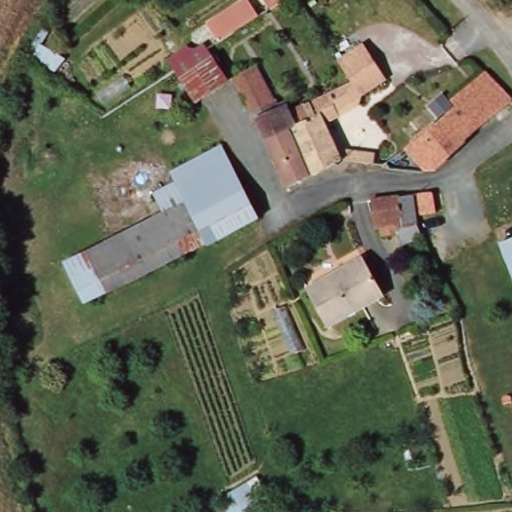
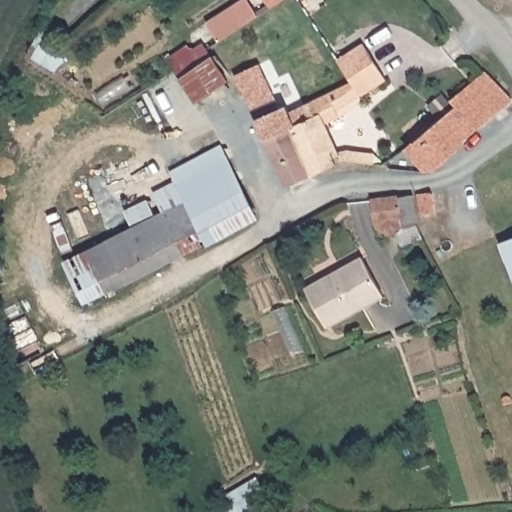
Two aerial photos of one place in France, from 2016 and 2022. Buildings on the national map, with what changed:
unchanged [(208,20),(237,0),(251,0),(259,12),(220,39),(208,20)]
unchanged [(278,0),(270,5),(266,0),(278,0)]
unchanged [(335,54),(360,40),(382,76),(363,93),(359,97),(343,114),(329,122),(344,155),(312,172),(289,125),(312,114),(305,100),(328,90),(349,78),(335,54)]
unchanged [(229,79),(197,100),(190,89),(159,107),(154,99),(184,80),(182,75),(214,56),(229,79)]
unchanged [(312,114),(289,125),(312,172),(286,185),(234,77),(258,65),(274,98),(278,96),(280,104),(289,101),(292,106),(305,100),(312,114)]
unchanged [(509,92),(512,96),(512,97),(436,169),(426,169),(407,147),(414,140),(458,104),(454,97),(462,90),(467,85),(485,69),(509,92)]
unchanged [(80,300),(59,261),(159,211),(150,190),(169,180),(166,171),(217,142),(255,216),(204,245),(203,241),(179,254),(80,300)]
unchanged [(434,194),(437,215),(422,217),(419,195),(434,194)]
unchanged [(424,240),(404,246),(399,232),(381,238),(372,200),(411,195),(417,227),(420,227),(424,240)]
unchanged [(512,236),(512,271),(499,240),(512,236)]
unchanged [(386,293),(329,325),(308,285),(363,255),(386,293)]
unchanged [(223,497),(258,477),(268,491),(257,497),(264,512),(230,512),(223,497)]

